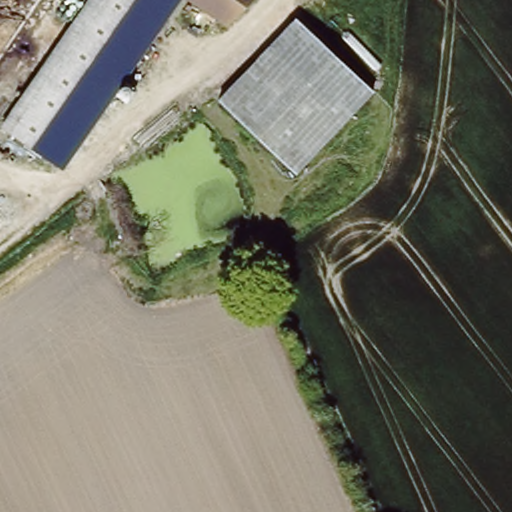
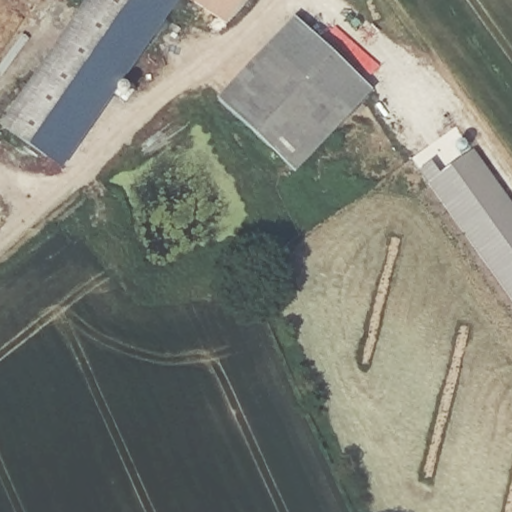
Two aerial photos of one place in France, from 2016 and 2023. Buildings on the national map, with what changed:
unchanged [(0,121),(0,117),(83,0),(175,0),(134,60),(60,164),(0,121)]
unchanged [(191,0),(250,0),(226,24),(191,0)]
unchanged [(291,19),(369,81),(299,168),(218,104),(291,19)]
new [(422,170),(434,162),(442,174),(476,150),(512,201),(512,297),(422,170)]

